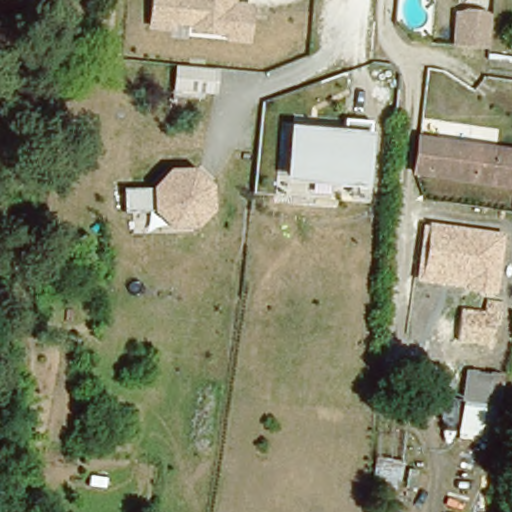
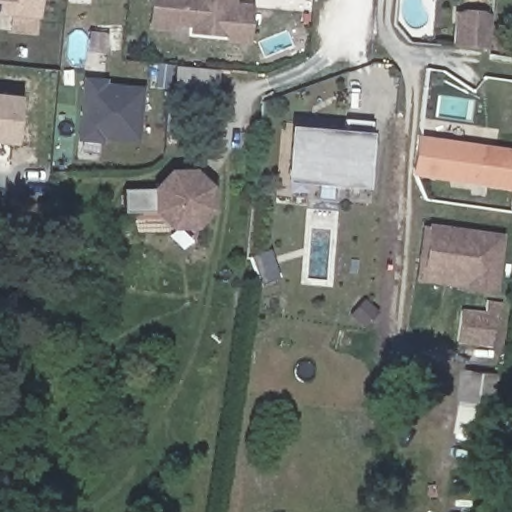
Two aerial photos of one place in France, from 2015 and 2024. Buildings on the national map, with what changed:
new [(8,15),(0,15),(0,0),(36,0),(35,17),(35,34),(7,32),(8,15)]
unchanged [(226,43),(227,36),(149,29),(152,0),(237,0),(237,3),(252,3),(250,45),(226,43)]
unchanged [(487,24),(482,57),(452,53),(457,20),(487,24)]
unchanged [(217,96),(172,92),(175,65),(218,68),(217,96)]
new [(82,77),(105,79),(105,83),(142,87),(138,140),(102,137),(101,142),(77,140),(82,77)]
new [(17,95),(12,146),(0,145),(0,94),(17,95)]
unchanged [(365,192),(284,185),(289,125),(342,131),(343,118),(372,122),(365,192)]
unchanged [(512,146),(512,183),(414,168),(419,132),(512,146)]
unchanged [(213,213),(195,230),(168,231),(150,214),(151,190),(169,168),(196,169),(212,184),(213,213)]
unchanged [(491,291),(412,280),(420,224),(501,236),(491,291)]
unchanged [(457,310),(479,312),(482,300),(496,302),(492,325),(486,324),(484,341),(483,345),(452,341),(453,333),(457,310)]
unchanged [(466,369),(500,374),(490,437),(456,430),(466,369)]
unchanged [(373,482),(375,458),(402,461),(398,486),(378,483),(375,512),(366,512),(368,481),(373,482)]

